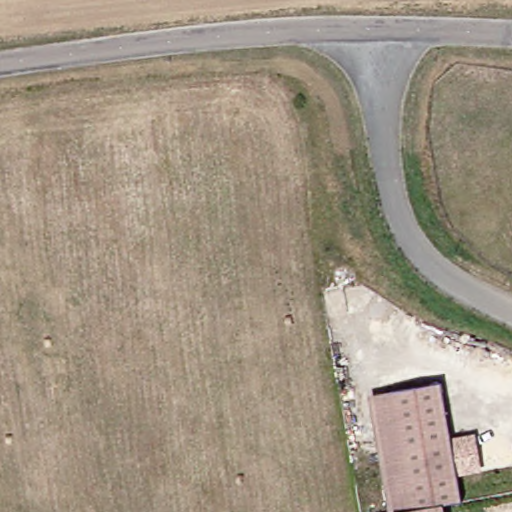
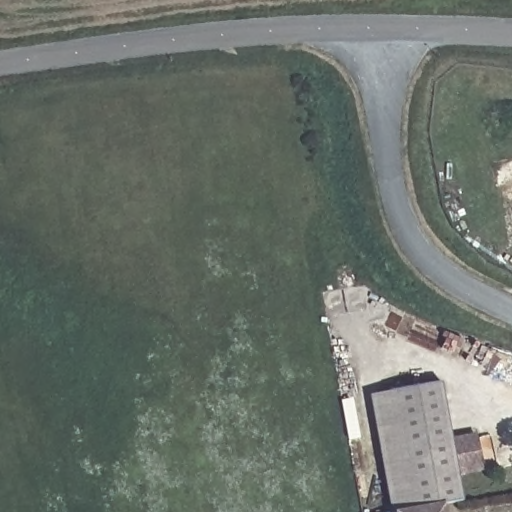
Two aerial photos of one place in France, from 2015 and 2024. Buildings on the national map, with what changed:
unchanged [(442,507),(408,511),(393,392),(443,385),(455,445),(472,442),(477,472),(457,475),(462,503),(442,507)]
unchanged [(393,392),(408,511),(406,512),(388,512),(373,396),(393,392)]
unchanged [(442,507),(443,512),(406,512),(408,511),(442,507)]

